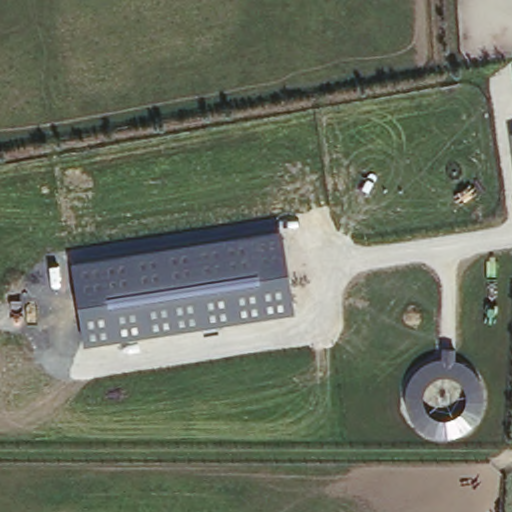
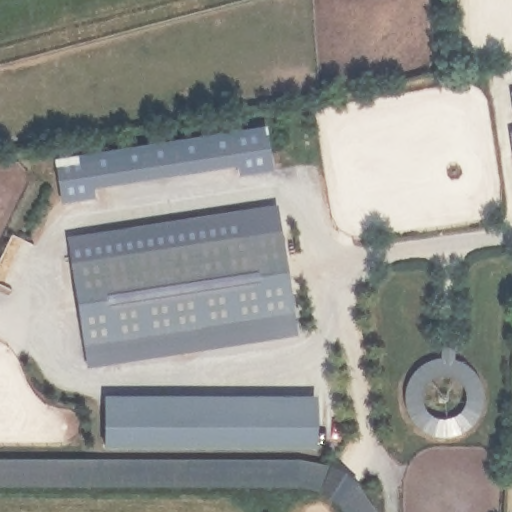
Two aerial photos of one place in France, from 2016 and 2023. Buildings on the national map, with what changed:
new [(267,127),(272,172),(239,175),(238,164),(94,188),(95,197),(59,202),(52,159),(267,127)]
unchanged [(511,132),(512,131),(512,143),(511,132)]
unchanged [(66,237),(278,203),(296,331),(86,365),(66,237)]
new [(405,385),(407,380),(414,369),(424,362),(432,359),(442,358),(443,346),(454,348),(452,360),(464,363),(473,370),(479,379),(483,388),(484,400),(482,411),(477,419),(474,422),(470,426),(464,431),(456,435),(446,436),(435,435),(426,433),(416,426),(410,418),(407,410),(404,402),(403,395),(405,385)]
new [(317,397),(317,447),(101,447),(104,396),(317,397)]
new [(323,464),(332,467),(338,460),(361,476),(355,483),(376,512),(342,512),(337,503),(322,493),(299,488),(0,489),(0,461),(300,461),(323,464)]

